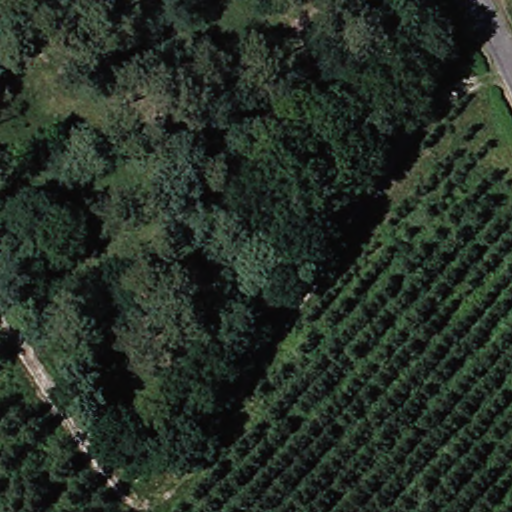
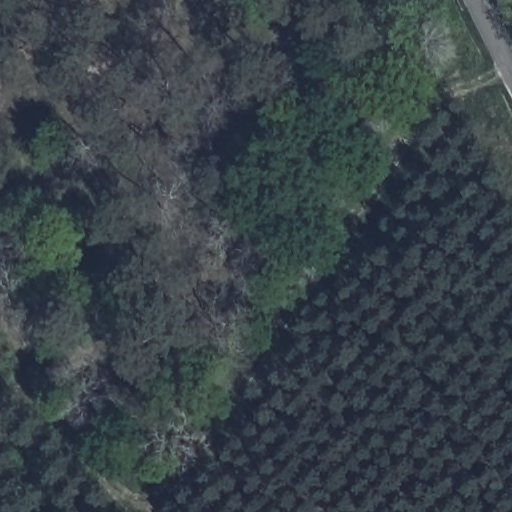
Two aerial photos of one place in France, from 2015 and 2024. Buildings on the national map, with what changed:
[]

